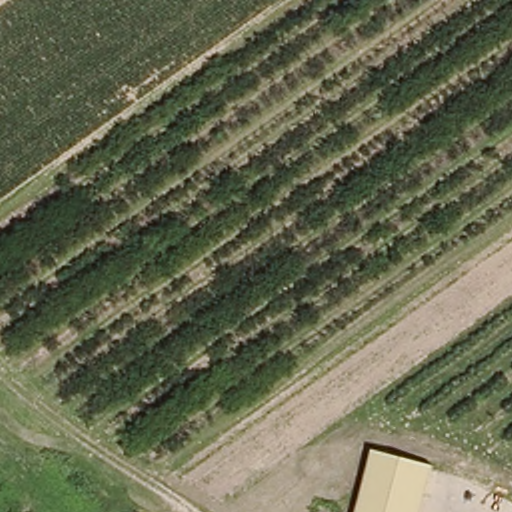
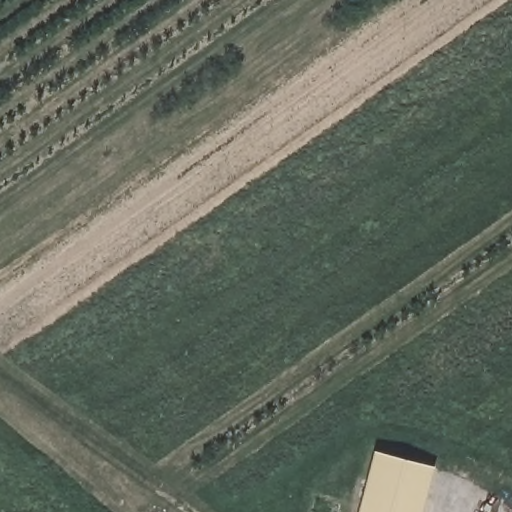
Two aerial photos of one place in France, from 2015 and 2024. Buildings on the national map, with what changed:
unchanged [(361,512),(368,489),(380,450),(408,459),(412,456),(416,461),(435,467),(432,478),(422,512),(361,512)]

